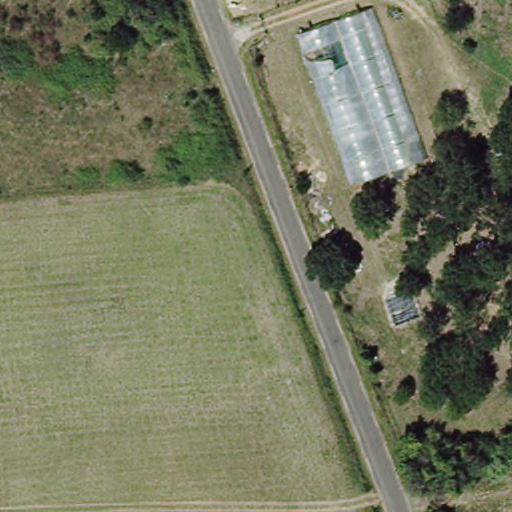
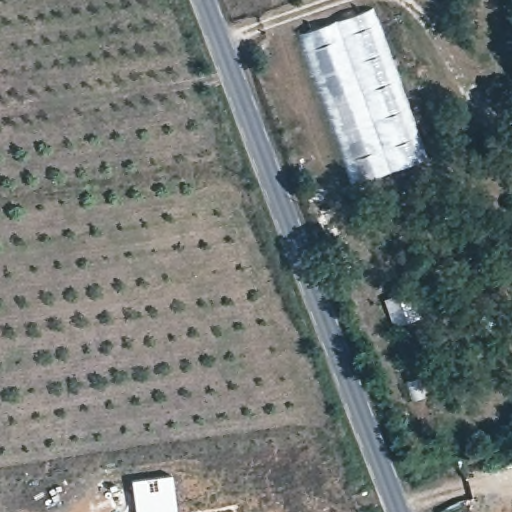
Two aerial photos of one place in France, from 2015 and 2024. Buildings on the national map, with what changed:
unchanged [(338,39),(335,24),(372,15),(432,161),(355,186),(303,49),(338,39)]
new [(176,512),(135,512),(130,480),(172,475),(176,512)]

